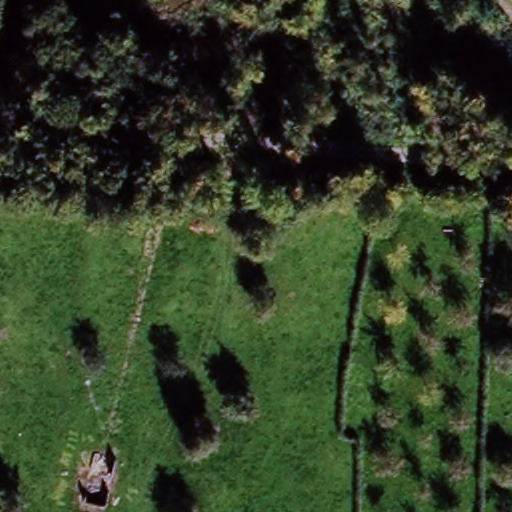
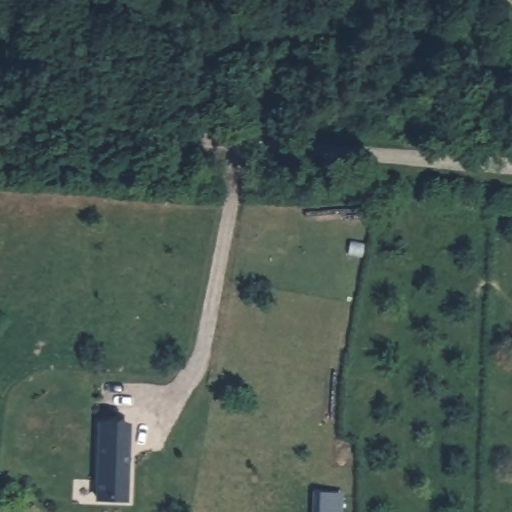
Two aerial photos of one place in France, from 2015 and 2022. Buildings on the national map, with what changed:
new [(129,423),(128,502),(95,501),(98,422),(129,423)]
demolished [(99,460),(117,464),(106,511),(88,508),(99,460)]

